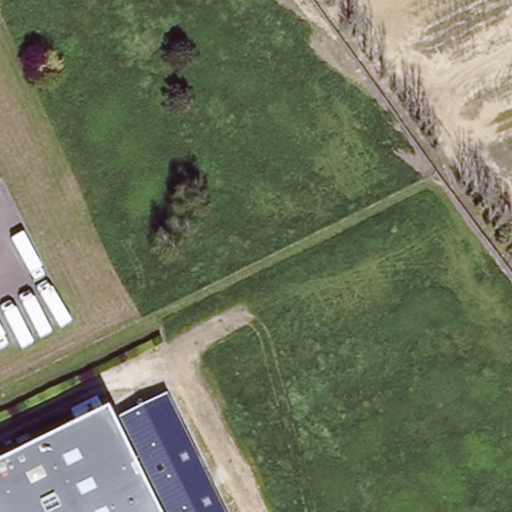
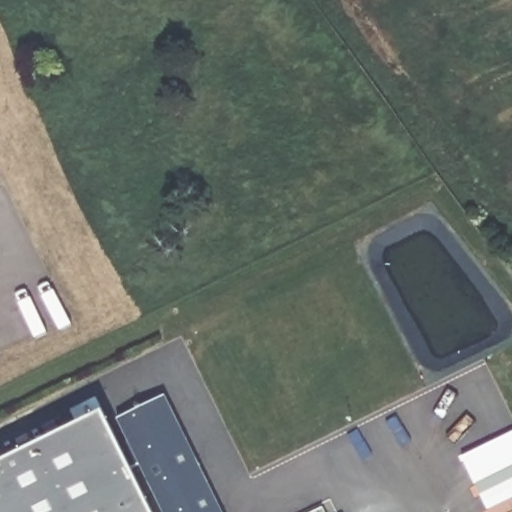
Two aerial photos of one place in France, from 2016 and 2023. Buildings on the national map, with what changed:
unchanged [(108,425),(163,396),(221,512),(151,512),(108,425)]
unchanged [(0,466),(103,415),(151,512),(0,512),(0,466)]
new [(507,512),(487,512),(461,456),(512,432),(512,510),(507,512)]
new [(324,508),(326,512),(315,512),(324,508)]

